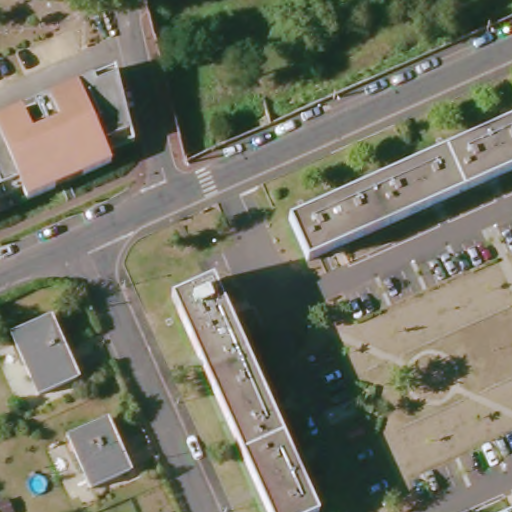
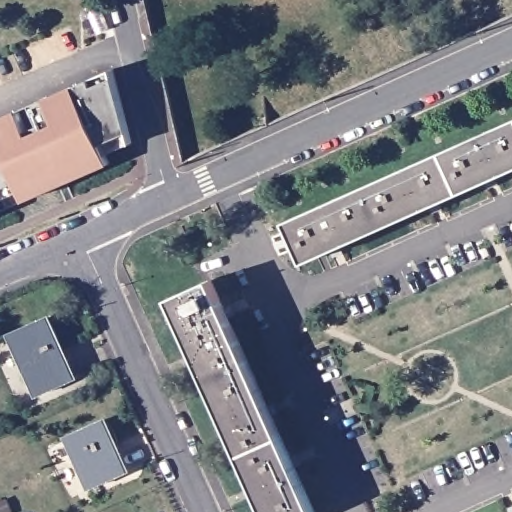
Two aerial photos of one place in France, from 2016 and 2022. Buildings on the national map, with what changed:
unchanged [(60,95),(112,73),(130,157),(80,179),(60,95)]
unchanged [(80,179),(0,215),(0,122),(60,95),(80,179)]
unchanged [(290,218),(512,119),(512,166),(308,258),(290,218)]
unchanged [(171,297),(211,280),(315,512),(268,512),(171,297)]
unchanged [(10,332),(48,315),(75,375),(37,393),(10,332)]
unchanged [(67,434),(105,417),(128,468),(90,485),(67,434)]

